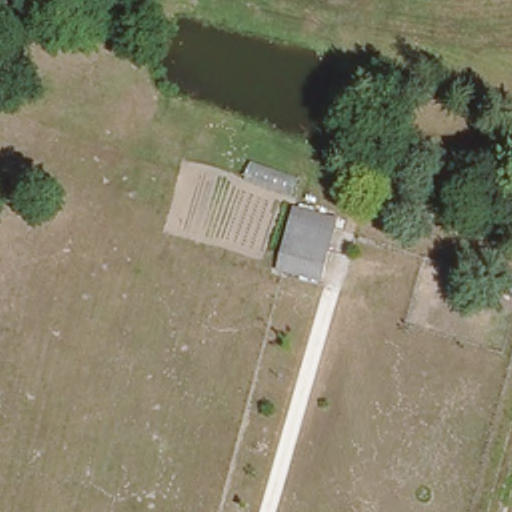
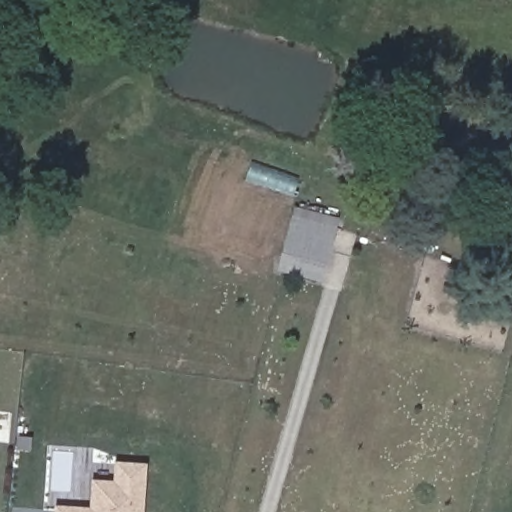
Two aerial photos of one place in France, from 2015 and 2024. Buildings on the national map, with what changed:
unchanged [(289,204),(335,217),(318,281),(277,270),(289,204)]
new [(94,505),(94,480),(116,480),(118,463),(149,463),(146,512),(56,512),(56,505),(94,505)]

